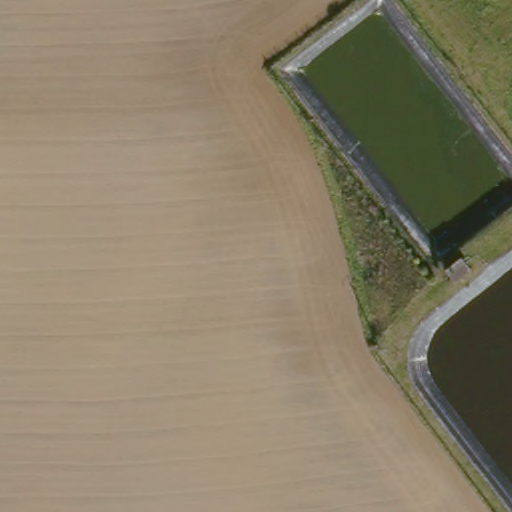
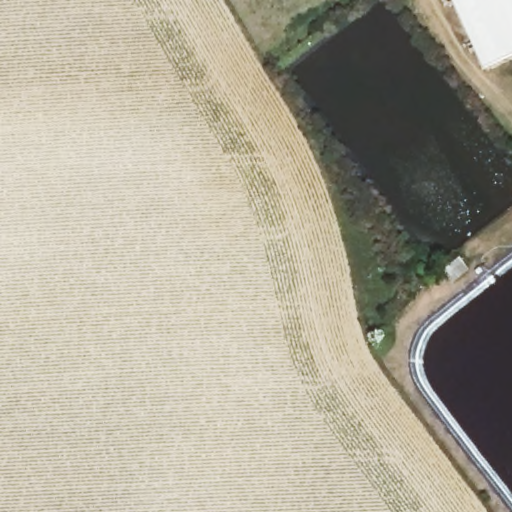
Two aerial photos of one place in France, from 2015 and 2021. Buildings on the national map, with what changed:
new [(485,66),(454,0),(512,0),(512,55),(485,66)]

